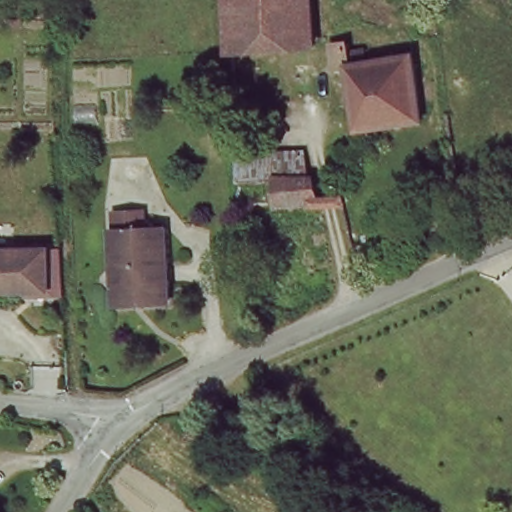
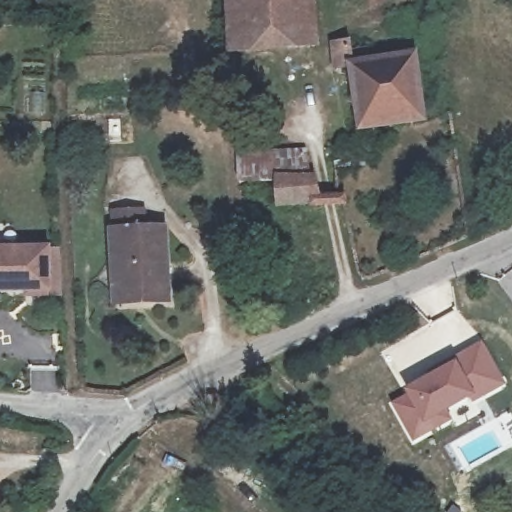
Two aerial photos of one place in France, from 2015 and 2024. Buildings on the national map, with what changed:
unchanged [(242,50),(234,0),(316,0),(323,45),(242,50)]
unchanged [(364,47),(365,57),(377,56),(378,66),(379,66),(421,62),(430,122),(369,131),(362,77),(350,77),(348,49),(364,47)]
unchanged [(297,142),(299,176),(276,177),(237,178),(235,147),(297,142)]
unchanged [(368,144),(370,170),(340,172),(338,147),(368,144)]
unchanged [(276,177),(299,176),(320,176),(321,205),(277,207),(276,177)]
unchanged [(119,287),(116,229),(165,227),(169,307),(147,307),(119,307),(119,287)]
unchanged [(46,290),(0,289),(0,250),(48,250),(46,290)]
new [(452,362),(480,345),(502,382),(472,398),(471,395),(446,408),(454,422),(415,443),(393,406),(410,396),(407,392),(454,365),(452,362)]

